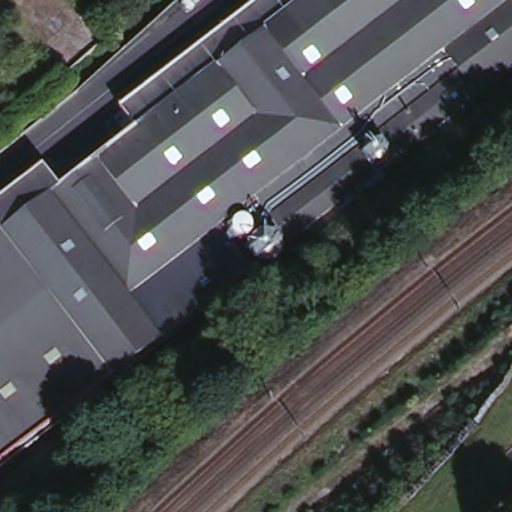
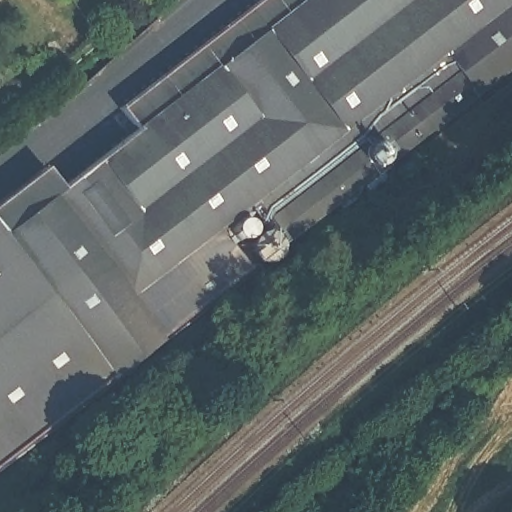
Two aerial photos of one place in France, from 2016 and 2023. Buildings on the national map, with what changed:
unchanged [(47,164),(62,182),(135,126),(120,106),(257,0),(512,0),(512,65),(293,238),(298,245),(268,268),(263,262),(120,375),(0,462),(0,201),(22,184),(47,164)]
unchanged [(124,0),(126,2),(115,12),(103,0),(124,0)]

